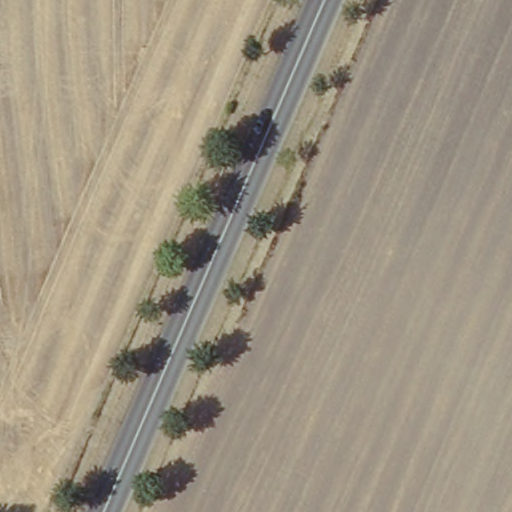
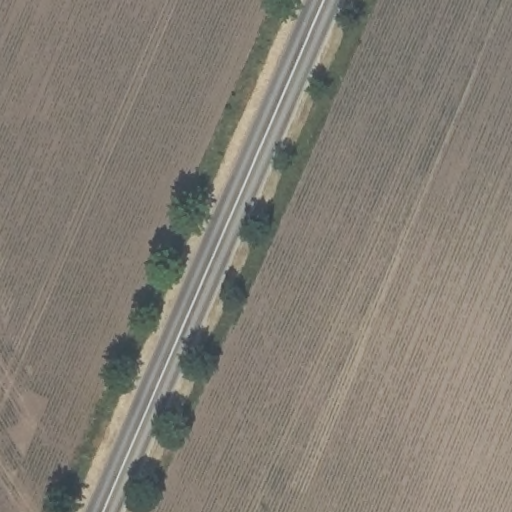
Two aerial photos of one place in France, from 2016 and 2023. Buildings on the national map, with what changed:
[]

